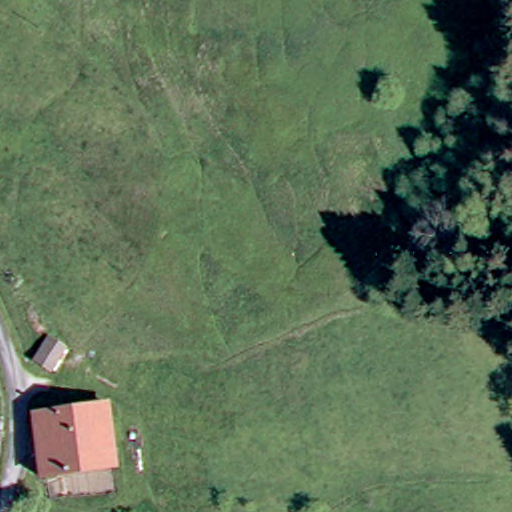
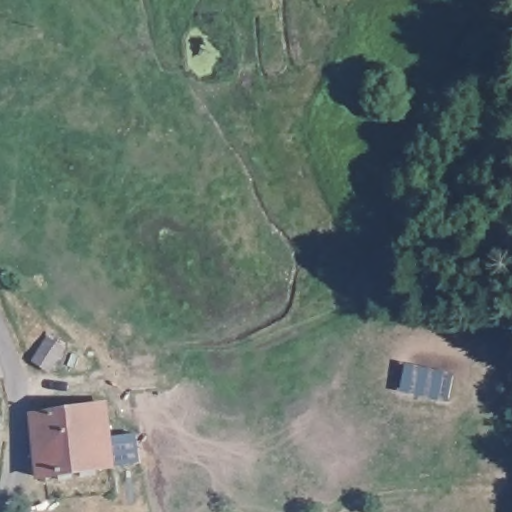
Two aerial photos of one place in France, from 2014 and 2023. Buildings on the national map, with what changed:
unchanged [(40,355),(52,335),(67,343),(57,362),(40,355)]
new [(406,366),(455,376),(450,399),(401,389),(406,366)]
unchanged [(28,422),(111,412),(118,473),(40,479),(28,422)]

